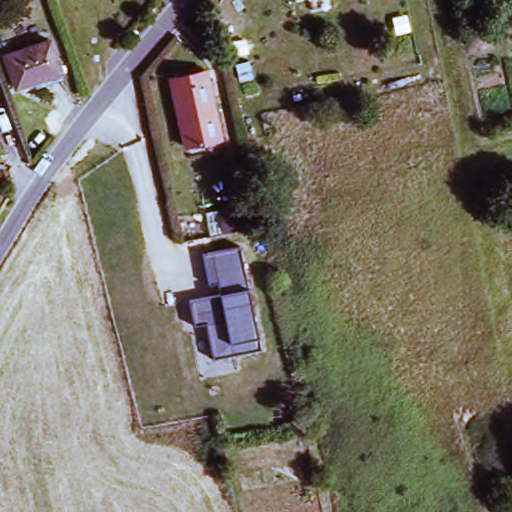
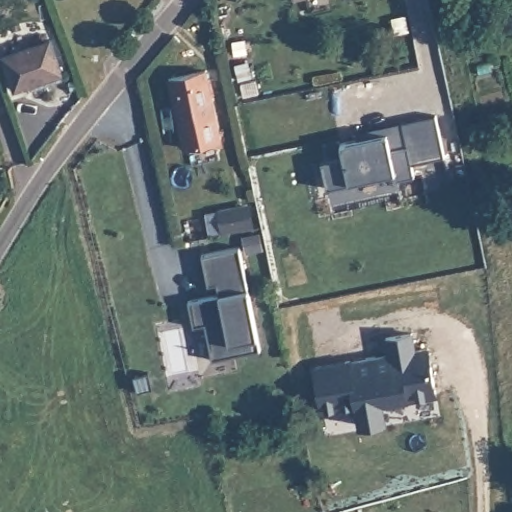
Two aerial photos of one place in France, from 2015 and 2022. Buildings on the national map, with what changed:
unchanged [(28,7),(22,0),(37,0),(28,7)]
unchanged [(60,69),(15,85),(5,52),(49,37),(60,69)]
unchanged [(164,80),(200,71),(216,140),(180,147),(164,80)]
new [(437,115),(447,156),(412,164),(415,175),(397,180),(395,172),(330,190),(323,162),(344,158),(342,145),(388,134),(392,152),(408,147),(403,124),(437,115)]
new [(257,202),(262,225),(246,228),(242,205),(257,202)]
unchanged [(262,349),(212,359),(206,323),(195,325),(192,302),(220,296),(218,286),(209,288),(203,254),(240,246),(262,349)]
new [(415,332),(418,350),(430,347),(439,397),(385,405),(389,423),(360,428),(355,406),(321,411),(315,367),(387,351),(385,337),(415,332)]

